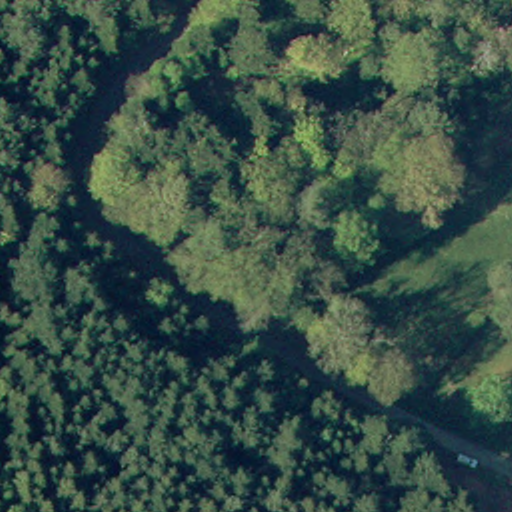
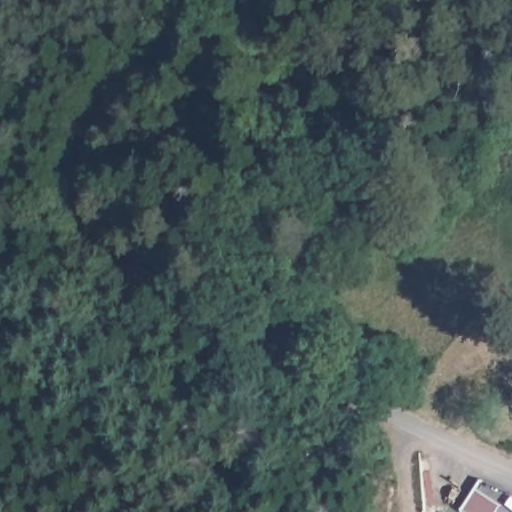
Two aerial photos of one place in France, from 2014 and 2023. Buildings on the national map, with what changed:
new [(495,512),(458,512),(474,488),(500,504),(495,512)]

